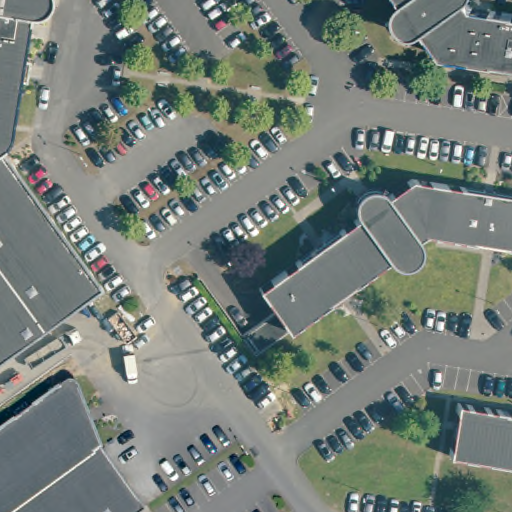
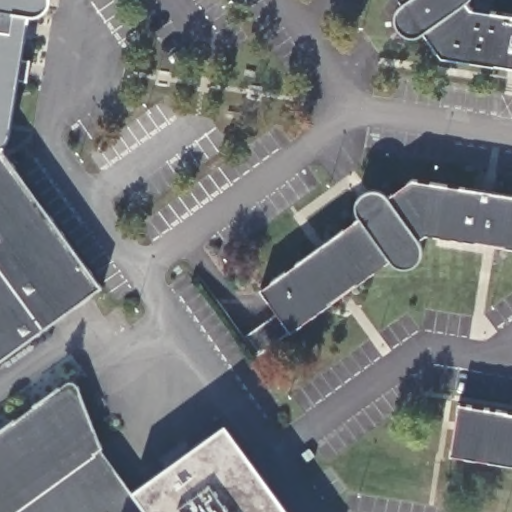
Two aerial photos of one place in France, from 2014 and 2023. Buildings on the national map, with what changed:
unchanged [(50,0),(45,8),(37,11),(29,13),(9,134),(2,143),(101,280),(0,356),(0,0),(50,0)]
unchanged [(512,9),(512,65),(440,53),(421,28),(416,31),(410,31),(404,30),(399,28),(396,23),(394,16),(394,10),(396,4),(399,0),(468,0),(471,3),(512,9)]
unchanged [(355,210),(353,205),(353,200),(355,195),(358,190),(362,188),(367,185),(373,184),(378,185),(383,188),(387,192),(412,174),(512,191),(512,245),(424,230),(418,234),(423,244),(423,249),(421,254),(417,259),(412,261),(409,264),(404,265),(399,264),(395,262),(388,257),(255,354),(241,334),(274,309),(258,284),(357,214),(355,210)]
unchanged [(135,512),(0,512),(0,425),(68,375),(71,375),(75,377),(77,379),(79,383),(104,444),(145,504),(135,512)]
unchanged [(459,397),(512,406),(512,461),(450,451),(459,397)]
new [(223,424),(287,512),(135,512),(145,504),(134,489),(223,424)]

